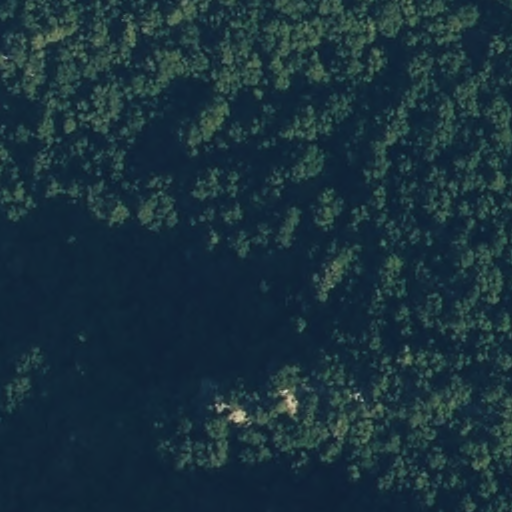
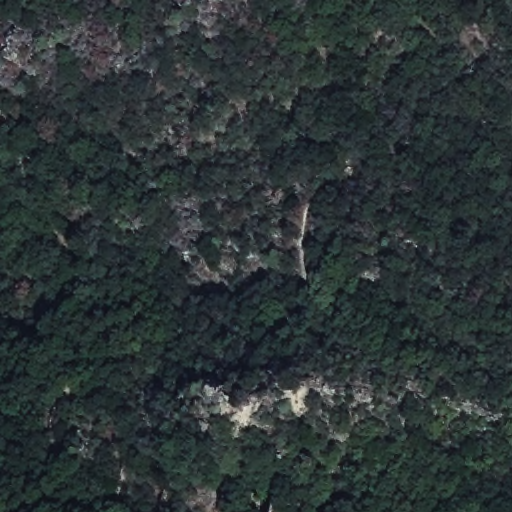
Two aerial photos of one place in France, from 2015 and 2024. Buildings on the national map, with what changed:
unchanged [(295,512),(268,512),(272,498),(297,505),(295,512)]

